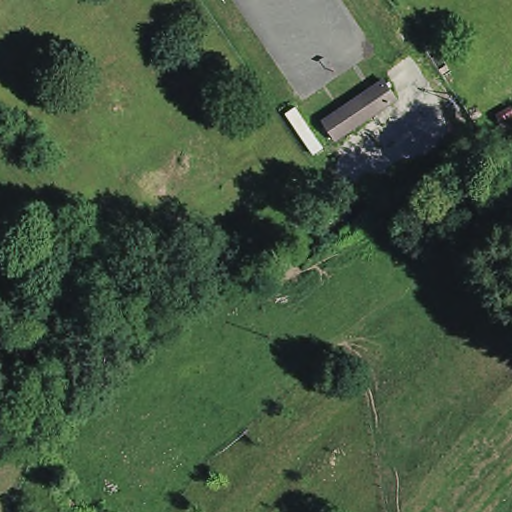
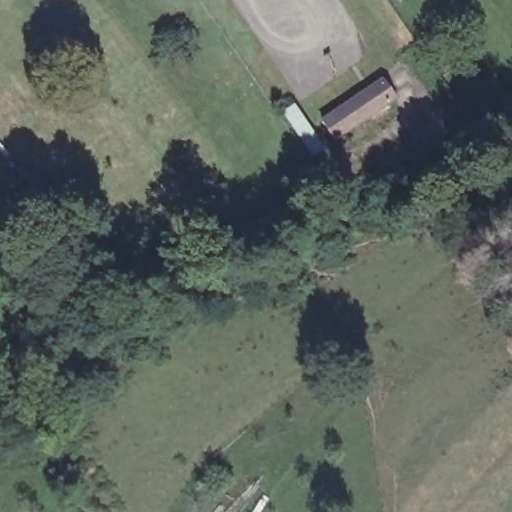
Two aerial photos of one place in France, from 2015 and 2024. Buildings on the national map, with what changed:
unchanged [(325,134),(346,111),(381,85),(395,102),(335,145),(325,134)]

